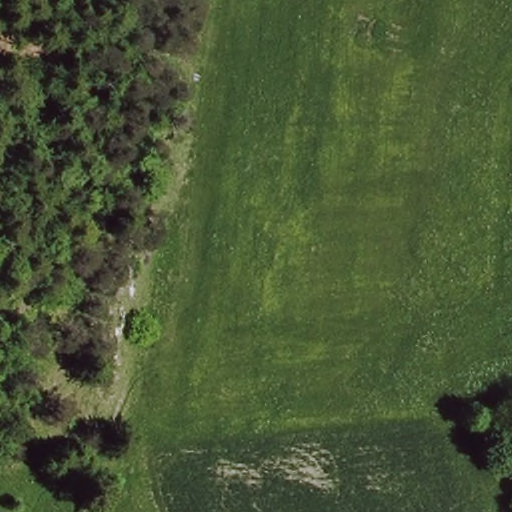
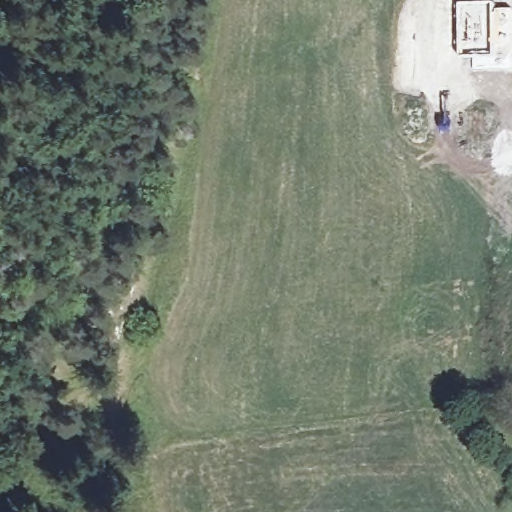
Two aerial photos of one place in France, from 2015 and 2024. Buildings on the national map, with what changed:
new [(494,2),(494,22),(492,22),(491,53),(459,53),(458,2),(494,2)]

